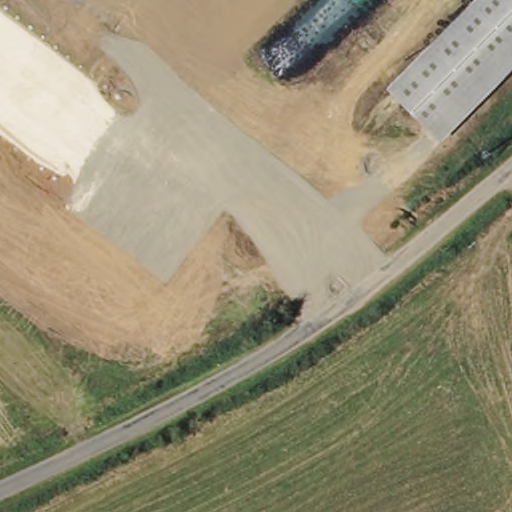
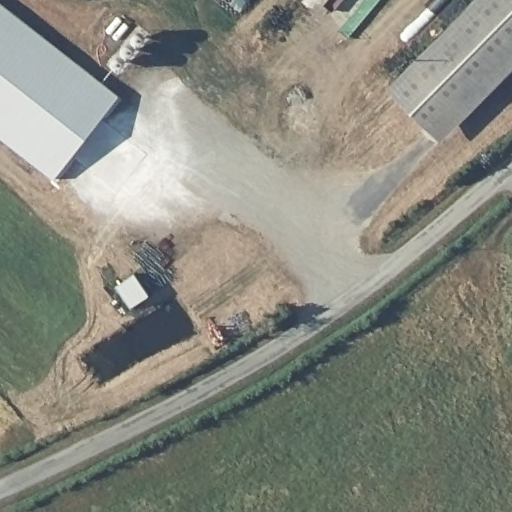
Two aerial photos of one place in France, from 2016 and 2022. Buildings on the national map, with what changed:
unchanged [(385,90),(473,0),(512,0),(512,68),(440,144),(385,90)]
new [(53,179),(0,138),(0,2),(118,94),(53,179)]

